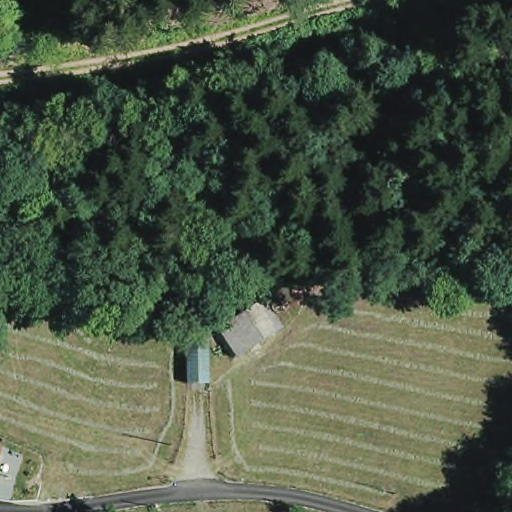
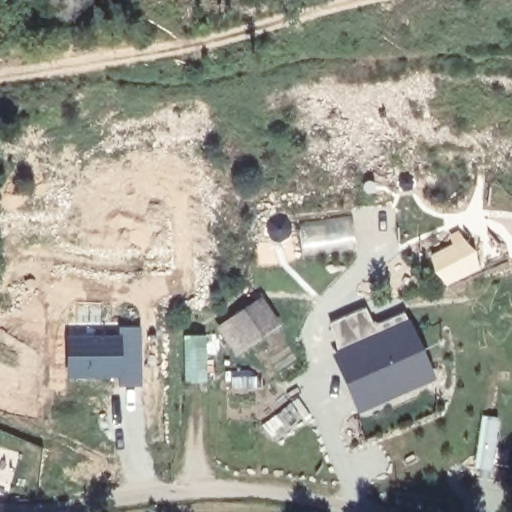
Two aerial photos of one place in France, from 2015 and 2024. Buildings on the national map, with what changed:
new [(454,243),(451,237),(462,231),(482,269),(446,288),(429,257),(454,243)]
unchanged [(218,327),(259,300),(272,320),(231,347),(218,327)]
new [(429,379),(355,413),(326,352),(406,324),(429,379)]
new [(139,389),(116,389),(117,379),(63,381),(62,337),(118,337),(118,329),(138,329),(139,389)]
unchanged [(185,335),(206,335),(207,381),(186,381),(185,335)]

